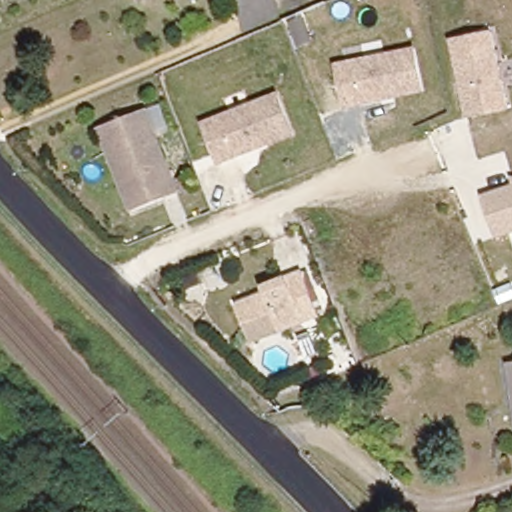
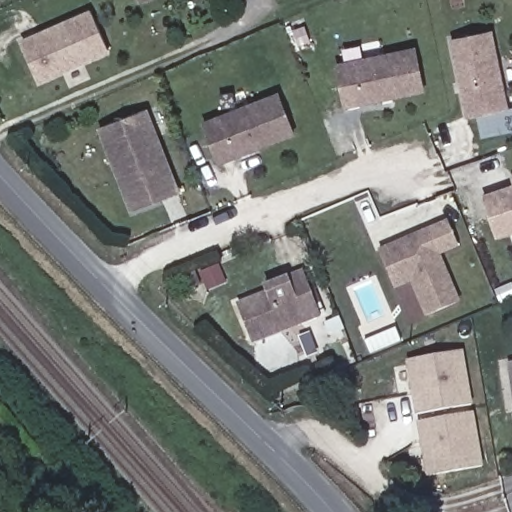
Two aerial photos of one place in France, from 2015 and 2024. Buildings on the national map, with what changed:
new [(41,83),(38,84),(18,40),(91,10),(110,52),(41,83)]
unchanged [(511,109),(466,117),(450,36),(495,30),(511,109)]
unchanged [(427,91),(343,108),(335,61),(418,47),(427,91)]
unchanged [(220,165),(202,122),(279,91),(297,135),(220,165)]
unchanged [(142,110),(172,194),(127,210),(118,184),(113,171),(97,125),(104,123),(121,116),(142,110)]
unchanged [(512,174),(512,175),(511,174),(512,174)]
unchanged [(482,193),(512,184),(512,233),(496,239),(482,193)]
new [(441,255),(460,302),(424,315),(411,282),(394,289),(378,249),(447,221),(459,249),(441,255)]
unchanged [(252,340),(239,303),(269,292),(266,285),(287,278),(304,273),(320,317),(252,340)]
new [(461,351),(470,403),(418,412),(410,360),(461,351)]
unchanged [(512,362),(512,392),(508,362),(512,362)]
new [(471,410),(480,462),(429,471),(420,420),(471,410)]

